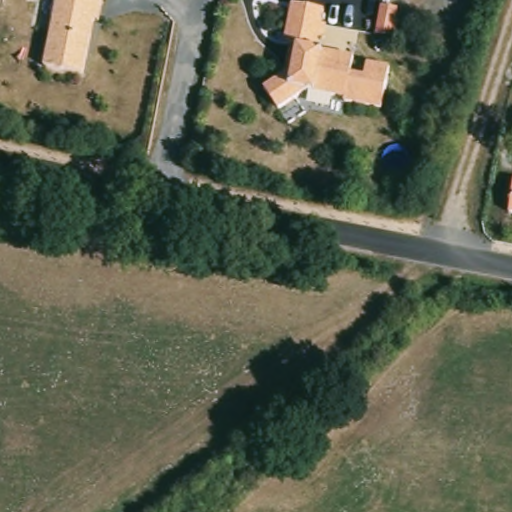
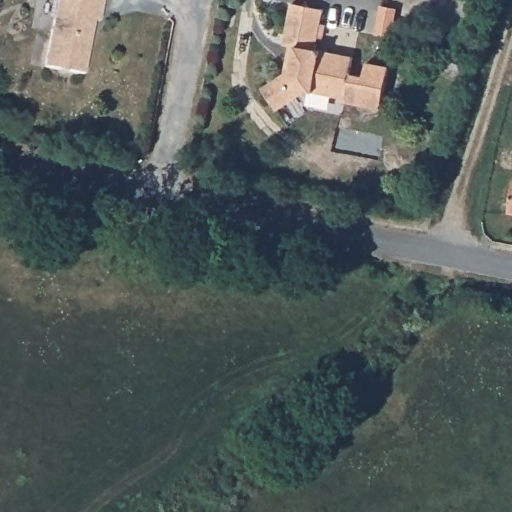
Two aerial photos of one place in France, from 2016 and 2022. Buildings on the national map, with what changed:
unchanged [(58,0),(104,0),(103,6),(100,22),(95,21),(85,74),(45,66),(58,0)]
unchanged [(287,42),(295,1),(326,7),(323,22),(327,22),(325,34),(321,34),(319,47),(357,55),(354,72),(350,97),(310,89),(281,107),(266,86),(288,72),(293,44),(287,42)]
unchanged [(368,75),(370,61),(393,65),(385,107),(349,100),(350,97),(354,72),(368,75)]

